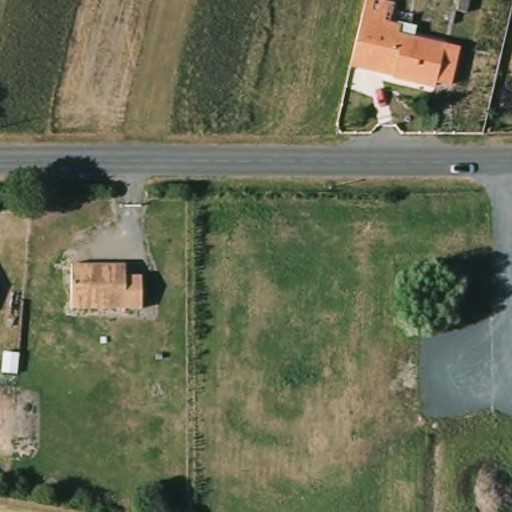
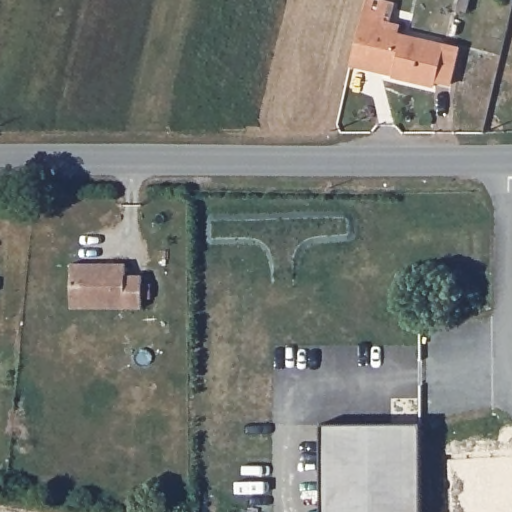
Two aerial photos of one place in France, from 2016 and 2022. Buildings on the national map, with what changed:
unchanged [(357,60),(366,19),(385,24),(383,34),(446,50),(437,88),(396,79),(355,70),(357,60)]
unchanged [(129,272),(129,285),(144,284),(144,316),(74,316),(75,272),(129,272)]
new [(422,512),(322,512),(321,425),(420,425),(422,512)]

